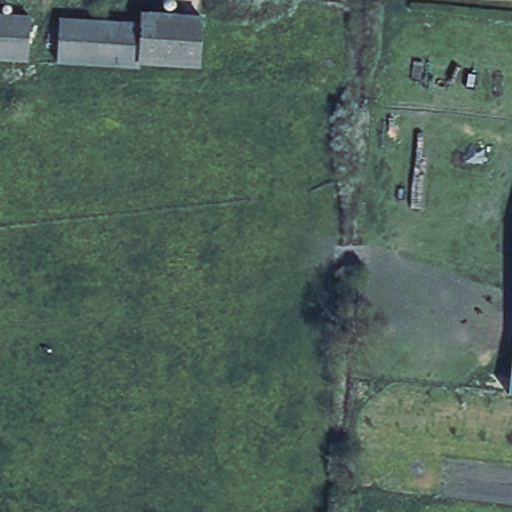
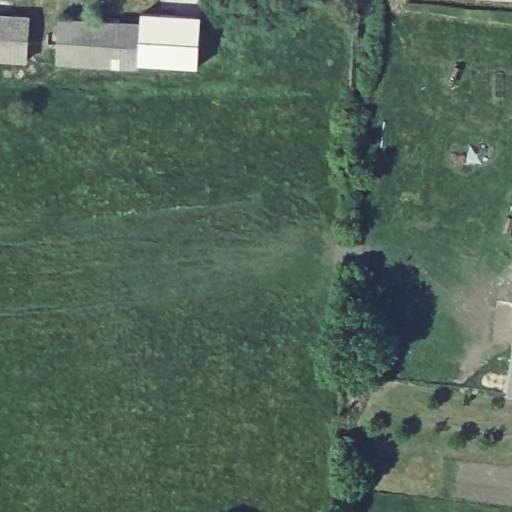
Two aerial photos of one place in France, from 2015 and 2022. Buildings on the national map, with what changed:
unchanged [(138,24),(139,10),(200,15),(196,65),(135,61),(138,24)]
unchanged [(27,60),(0,58),(0,13),(30,15),(27,60)]
unchanged [(135,65),(57,60),(59,19),(138,24),(135,61),(135,65)]
unchanged [(512,350),(512,397),(505,396),(512,350)]

